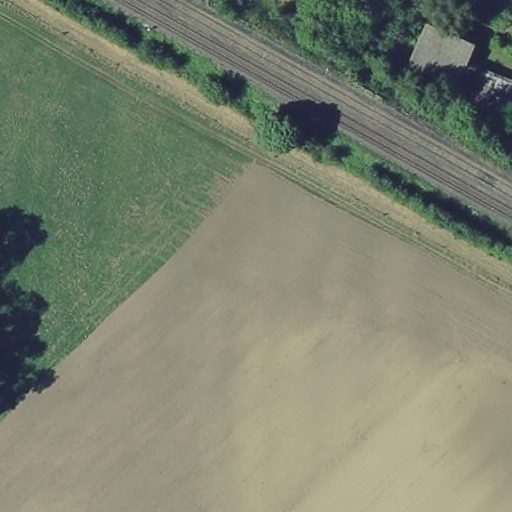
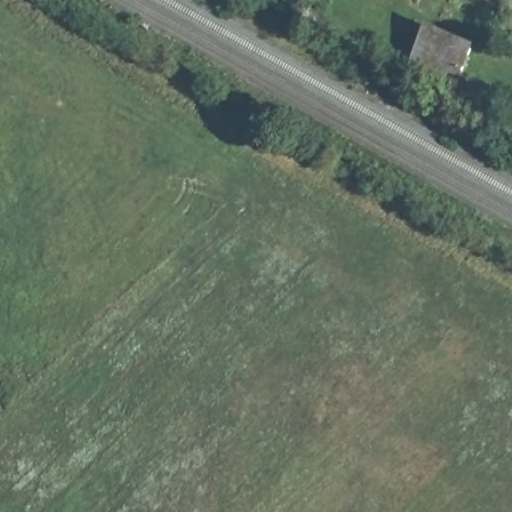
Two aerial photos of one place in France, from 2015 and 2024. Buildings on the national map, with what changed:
unchanged [(474,61),(512,79),(512,117),(408,77),(429,20),(483,44),(474,61)]

